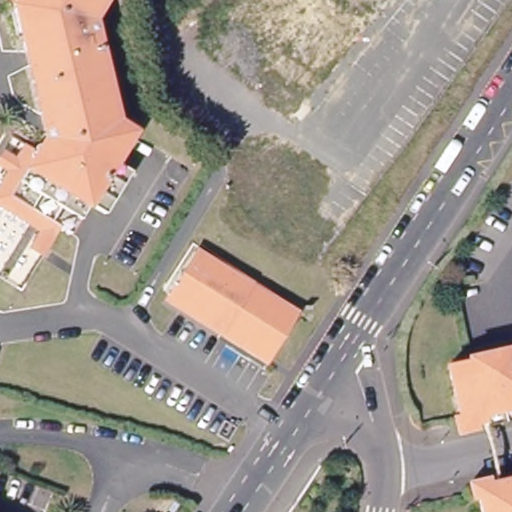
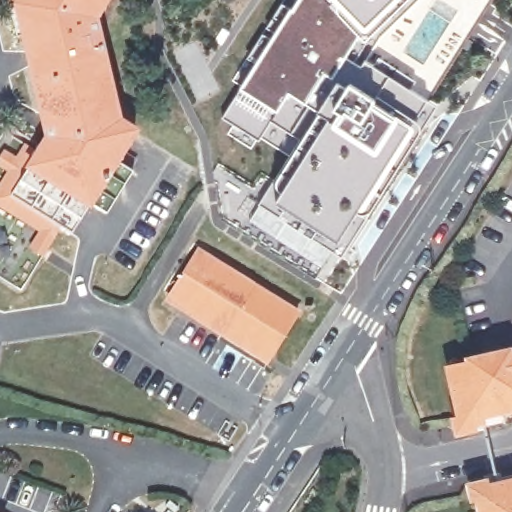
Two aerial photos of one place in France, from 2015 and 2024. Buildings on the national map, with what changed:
unchanged [(36,150),(45,136),(17,20),(5,12),(12,0),(112,0),(98,25),(119,120),(141,134),(122,167),(139,179),(113,223),(91,209),(73,239),(61,231),(56,238),(0,203),(0,189),(27,144),(36,150)]
demolished [(310,102),(209,24),(228,0),(396,0),(310,102)]
new [(367,25),(362,20),(349,53),(429,99),(413,124),(338,237),(279,200),(260,200),(302,134),(270,116),(258,134),(226,112),(245,85),(295,0),(394,0),(367,25)]
unchanged [(8,131),(27,144),(0,189),(0,144),(8,131)]
demolished [(292,218),(256,200),(274,166),(311,185),(292,218)]
unchanged [(22,296),(0,282),(0,203),(56,238),(22,296)]
unchanged [(270,360),(170,297),(198,255),(296,320),(270,360)]
unchanged [(483,426),(471,428),(470,422),(458,425),(447,374),(469,368),(468,363),(507,355),(508,360),(512,358),(512,426),(484,432),(483,426)]
unchanged [(512,482),(512,512),(482,512),(477,492),(512,482)]
unchanged [(3,505),(0,511),(0,504),(3,505)]

